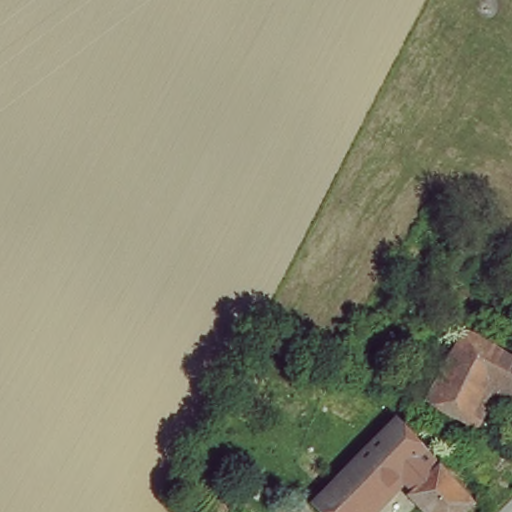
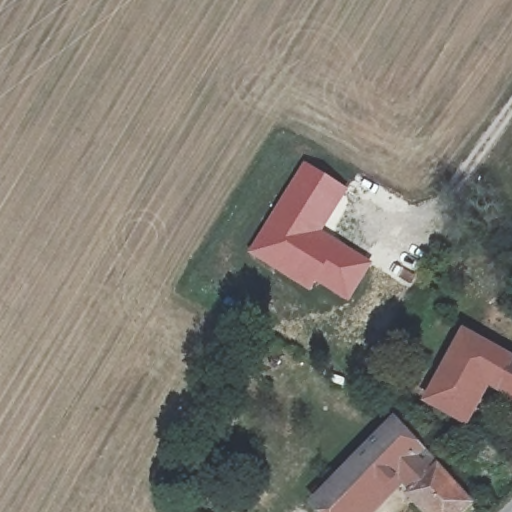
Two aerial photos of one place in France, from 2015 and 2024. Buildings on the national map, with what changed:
new [(349,299),(318,279),(320,275),(295,259),(286,262),(261,244),(283,210),(310,168),(347,192),(320,234),(370,266),(349,299)]
unchanged [(485,437),(426,405),(462,329),(512,356),(512,412),(501,406),(485,437)]
unchanged [(398,420),(487,507),(482,512),(424,512),(415,504),(421,498),(409,486),(384,512),(311,512),(398,420)]

